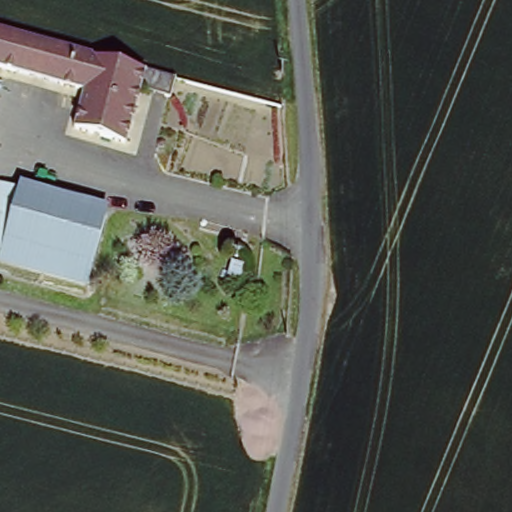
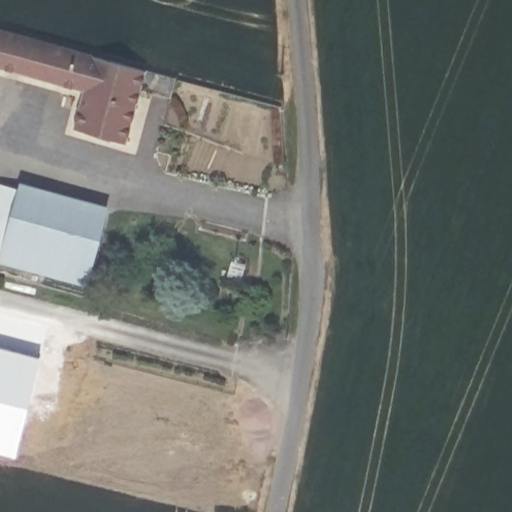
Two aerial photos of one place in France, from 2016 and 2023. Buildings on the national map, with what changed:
unchanged [(169,98),(139,89),(125,145),(72,128),(82,90),(0,67),(0,29),(174,81),(169,98)]
unchanged [(21,191),(23,184),(112,209),(90,288),(1,263),(1,261),(21,191)]
unchanged [(0,260),(0,193),(1,194),(3,186),(21,191),(1,261),(0,260)]
new [(15,455),(0,451),(0,349),(40,360),(15,455)]

